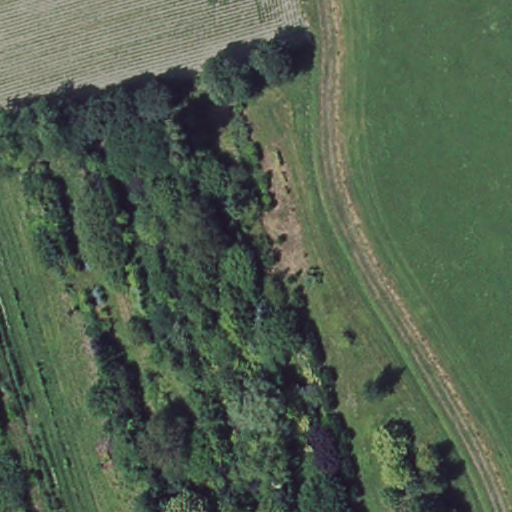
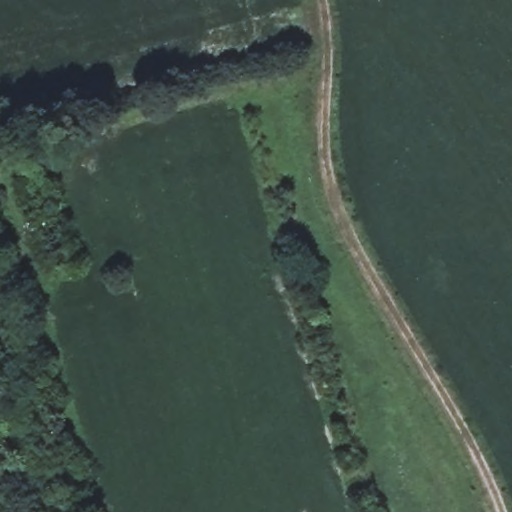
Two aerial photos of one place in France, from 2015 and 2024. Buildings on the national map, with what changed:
unchanged [(248,45),(276,38),(278,48),(251,55),(248,45)]

